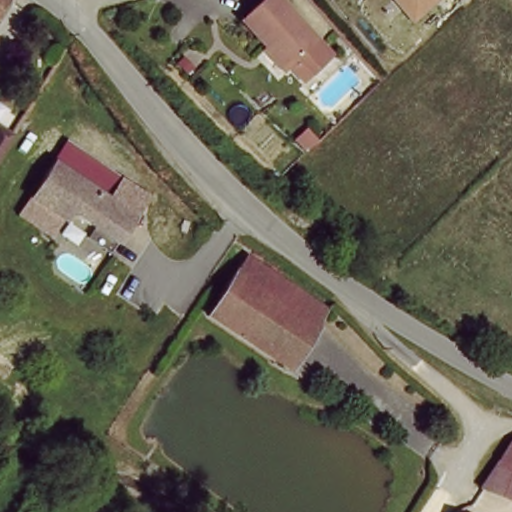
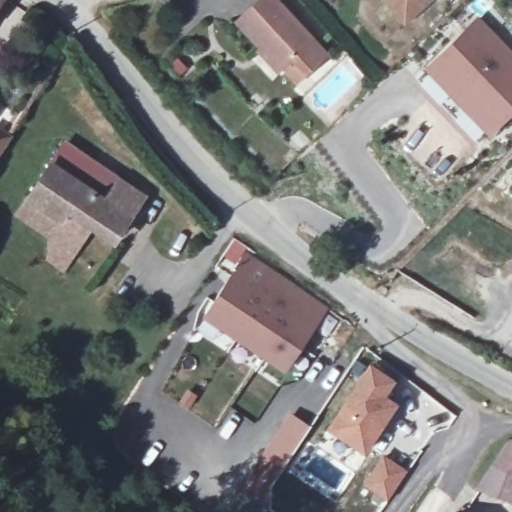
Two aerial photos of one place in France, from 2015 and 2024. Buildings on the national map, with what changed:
unchanged [(0,0),(1,0),(0,3),(0,0)]
unchanged [(282,0),(321,43),(291,72),(248,25),(276,0),(282,0)]
unchanged [(410,12),(404,17),(390,0),(435,0),(415,17),(410,12)]
new [(417,79),(425,71),(424,69),(478,17),(512,52),(512,114),(488,136),(487,135),(478,142),(417,79)]
unchanged [(0,149),(0,126),(10,132),(0,149)]
unchanged [(87,247),(95,234),(68,217),(60,231),(23,207),(46,172),(105,209),(118,189),(143,205),(130,226),(115,247),(113,245),(105,258),(87,247)]
unchanged [(246,258),(330,316),(287,376),(206,320),(246,258)]
new [(368,361),(397,380),(387,395),(398,403),(363,455),(324,428),(368,361)]
new [(288,411),(311,426),(279,471),(266,464),(260,472),(252,466),(288,411)]
unchanged [(480,488),(509,444),(512,443),(512,503),(480,488)]
new [(382,453),(407,470),(387,502),(361,485),(382,453)]

